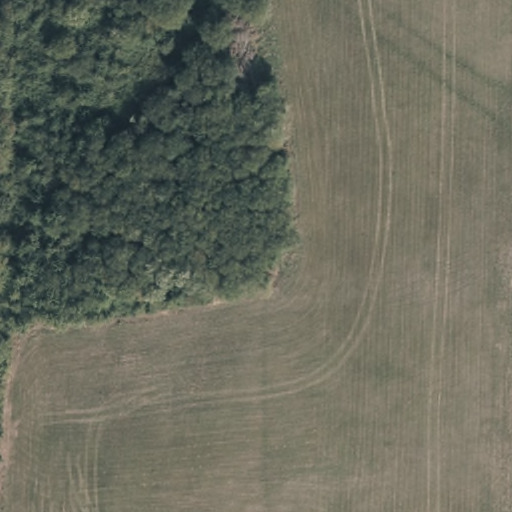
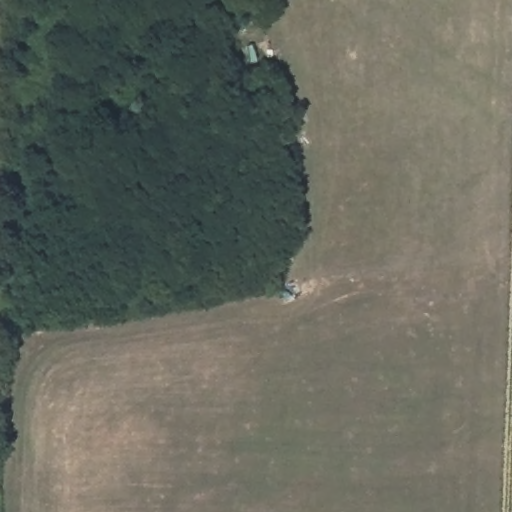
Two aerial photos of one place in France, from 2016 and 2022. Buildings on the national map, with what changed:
[]

